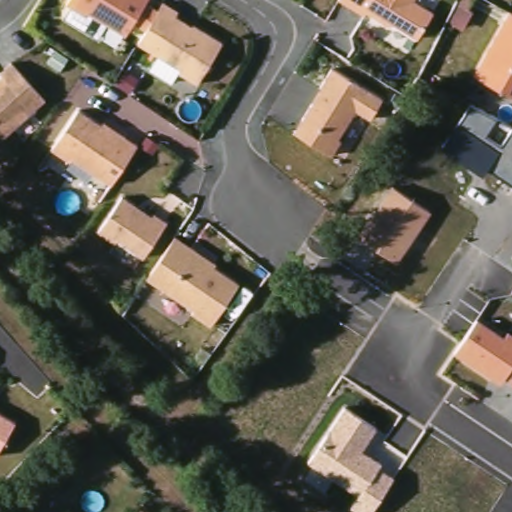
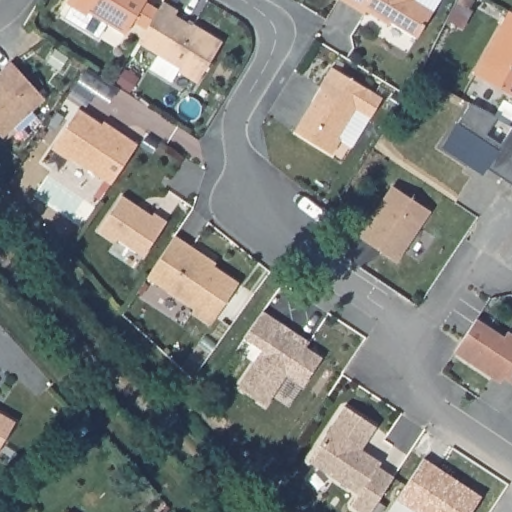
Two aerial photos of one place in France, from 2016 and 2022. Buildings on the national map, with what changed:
unchanged [(88,11),(86,15),(66,3),(68,0),(146,0),(125,35),(88,11)]
unchanged [(379,19),(366,11),(364,14),(341,0),(414,0),(433,11),(416,40),(390,24),(389,25),(379,19)]
unchanged [(456,0),(474,10),(464,27),(447,19),(456,0)]
unchanged [(163,1),(178,11),(174,15),(192,26),(194,25),(221,44),(197,82),(178,71),(180,68),(138,42),(163,1)]
unchanged [(512,13),(512,97),(473,75),(509,11),(512,13)]
unchanged [(0,135),(0,75),(1,74),(0,73),(0,71),(10,61),(44,98),(1,136),(0,135)]
unchanged [(371,118),(356,109),(338,138),(341,140),(332,155),(294,131),(322,88),(320,87),(332,67),(383,99),(371,118)]
unchanged [(433,71),(443,76),(438,86),(427,81),(433,71)]
unchanged [(491,166),(483,177),(443,150),(472,105),(512,128),(512,182),(491,166)]
unchanged [(109,187),(71,161),(69,165),(51,152),(78,112),(99,127),(104,122),(138,145),(109,187)]
unchanged [(359,237),(396,185),(432,211),(399,261),(359,237)]
unchanged [(122,196),(152,216),(154,214),(166,222),(143,256),(117,239),(115,242),(99,231),(122,196)]
unchanged [(174,236),(215,264),(214,266),(238,283),(210,325),(192,313),(194,310),(146,278),(174,236)]
new [(261,347),(242,335),(260,308),(279,320),(276,325),(320,354),(302,383),(285,372),(265,404),(237,385),(261,347)]
unchanged [(504,376),(500,382),(456,352),(479,318),(508,337),(511,332),(512,333),(512,382),(504,376)]
unchanged [(357,495),(310,461),(346,405),(379,426),(364,449),(383,461),(379,466),(396,476),(373,512),(361,512),(351,505),(357,495)]
unchanged [(0,446),(0,413),(14,421),(0,446)]
new [(414,512),(396,500),(424,460),(481,498),(472,512),(414,512)]

